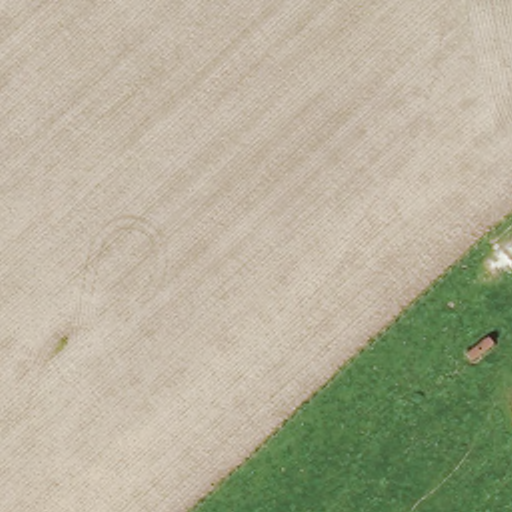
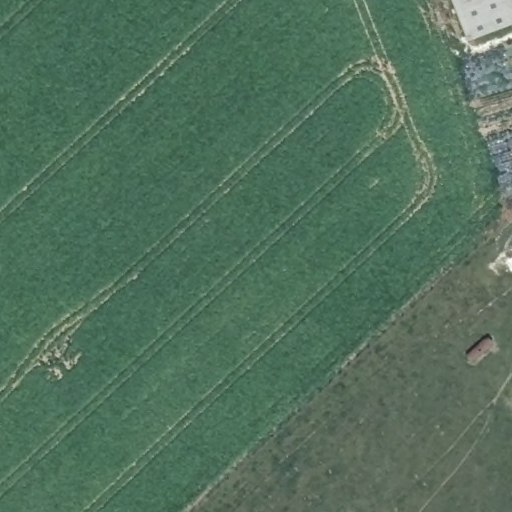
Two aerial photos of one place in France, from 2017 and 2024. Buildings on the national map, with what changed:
new [(456,0),(512,0),(512,30),(473,47),(456,0)]

